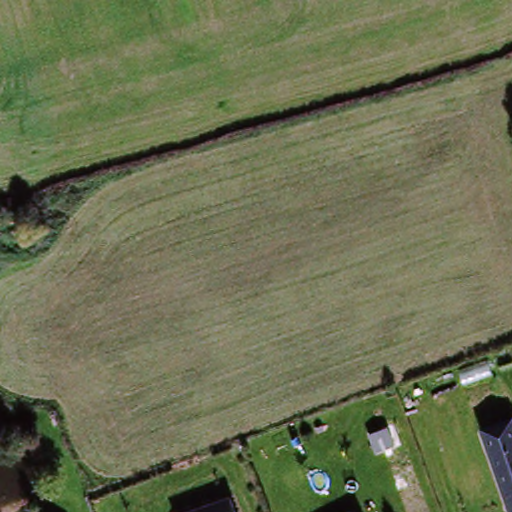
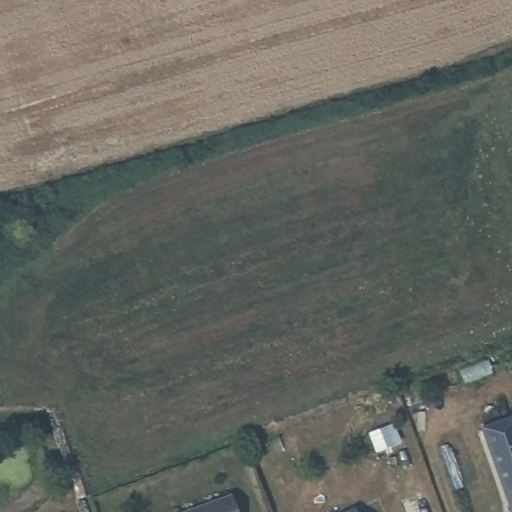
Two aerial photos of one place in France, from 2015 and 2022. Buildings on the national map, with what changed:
unchanged [(482,430),(512,420),(512,512),(511,512),(482,430)]
unchanged [(239,512),(201,512),(235,500),(239,512)]
unchanged [(360,510),(362,512),(356,512),(360,510)]

